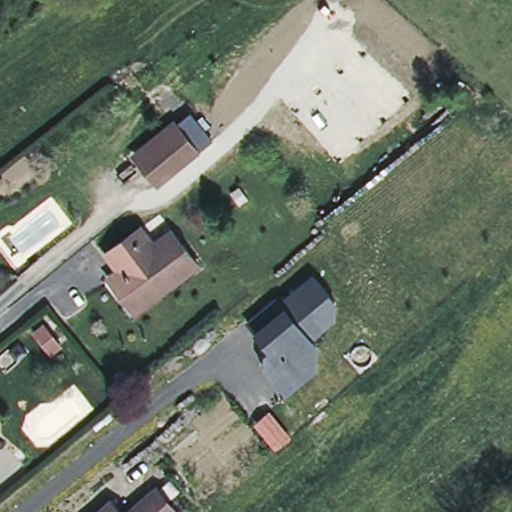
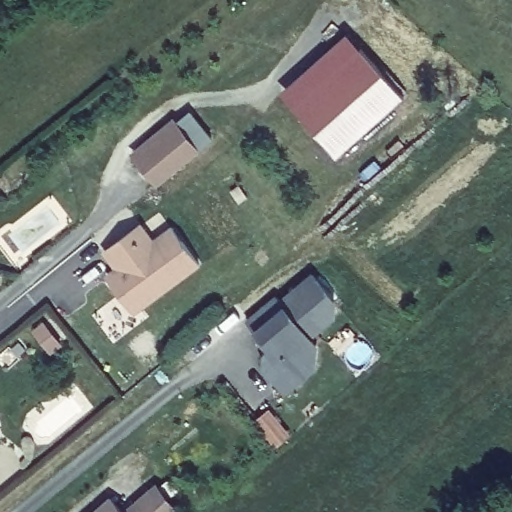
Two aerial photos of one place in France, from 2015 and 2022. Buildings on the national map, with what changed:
new [(349,34),(362,47),(295,108),(282,95),(349,34)]
new [(362,47),(405,95),(338,156),(295,108),(362,47)]
unchanged [(177,119),(180,121),(192,111),(213,140),(155,186),(130,156),(177,119)]
unchanged [(124,299),(114,286),(114,285),(107,278),(117,270),(105,255),(140,226),(148,235),(145,237),(152,245),(169,230),(180,243),(182,242),(199,262),(160,291),(160,295),(144,307),(135,314),(124,299)]
unchanged [(283,305),(277,299),(312,272),(335,300),(334,318),(313,339),(316,345),(317,369),(285,397),(259,366),(264,350),(249,332),(283,305)]
unchanged [(63,335),(52,343),(37,324),(47,315),(63,335)]
unchanged [(155,486),(175,510),(174,512),(125,512),(155,486)]
unchanged [(111,497),(123,512),(95,512),(111,497)]

